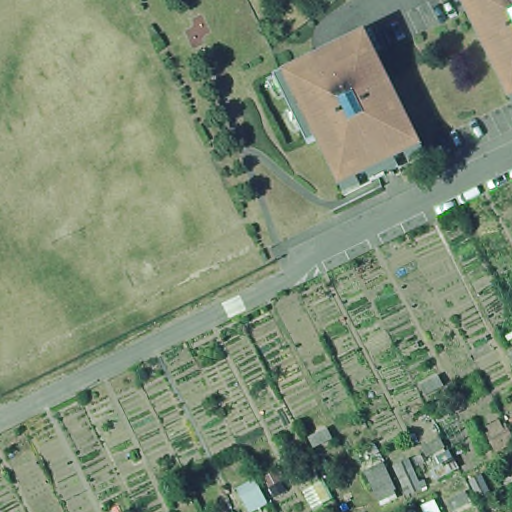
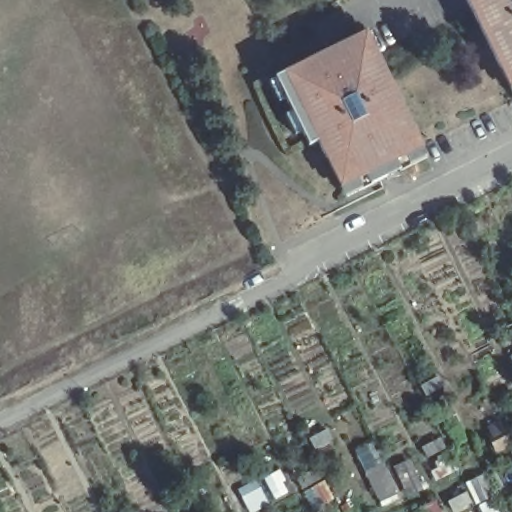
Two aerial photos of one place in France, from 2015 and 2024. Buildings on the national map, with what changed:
unchanged [(512,0),(512,87),(470,0),(512,0)]
unchanged [(351,197),(346,187),(323,139),(320,139),(313,143),(279,73),(286,69),(371,25),(429,145),(434,156),(406,169),(401,159),(396,162),(402,175),(393,179),(387,166),(374,173),(379,183),(351,197)]
unchanged [(388,464),(404,501),(381,509),(364,473),(388,464)]

